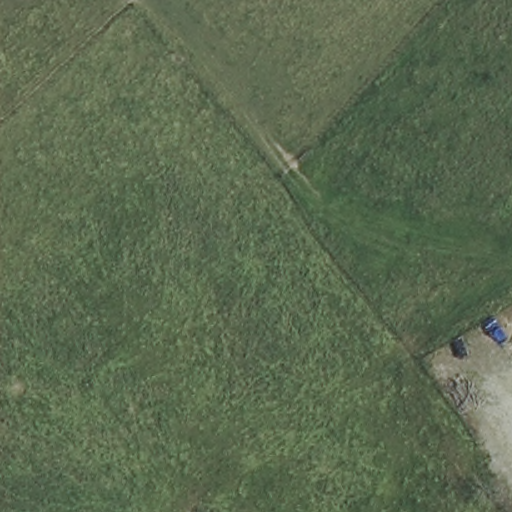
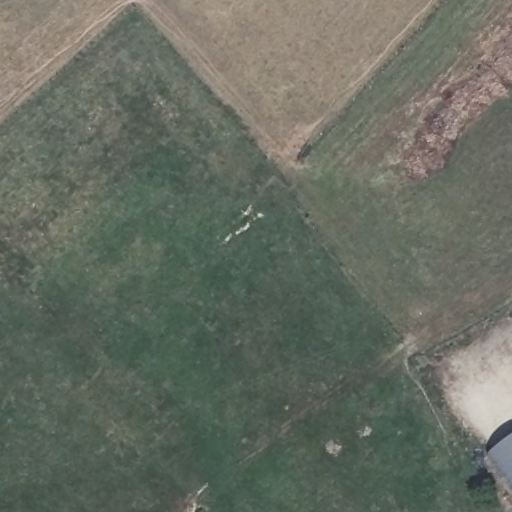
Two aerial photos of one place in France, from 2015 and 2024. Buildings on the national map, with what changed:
new [(485,453),(512,433),(512,489),(485,453)]

